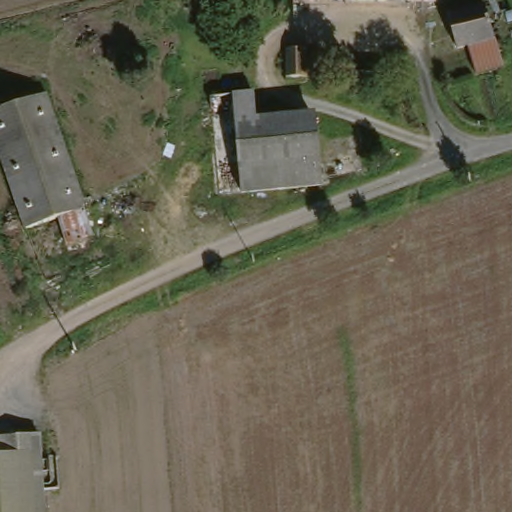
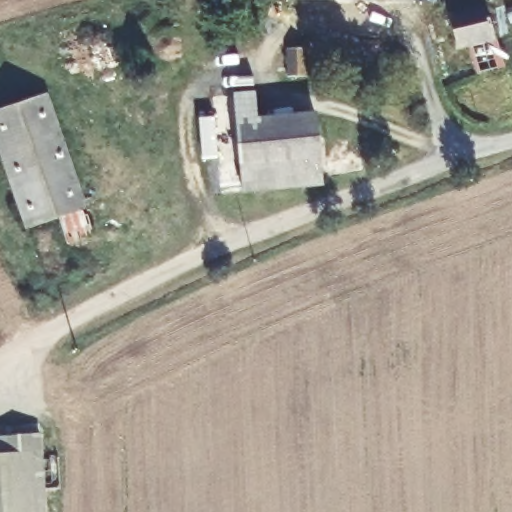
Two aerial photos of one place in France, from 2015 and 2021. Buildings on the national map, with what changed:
unchanged [(504,38),(468,47),(462,9),(498,1),(504,38)]
unchanged [(307,75),(289,76),(286,38),(305,37),(307,75)]
unchanged [(244,185),(218,187),(214,89),(240,87),(241,113),(244,185)]
unchanged [(94,238),(69,245),(61,220),(28,229),(0,121),(0,111),(56,95),(94,238)]
unchanged [(326,177),(244,185),(241,113),(314,105),(323,104),(326,177)]
unchanged [(0,512),(0,454),(4,454),(3,437),(47,435),(48,452),(49,480),(50,512),(0,512)]

